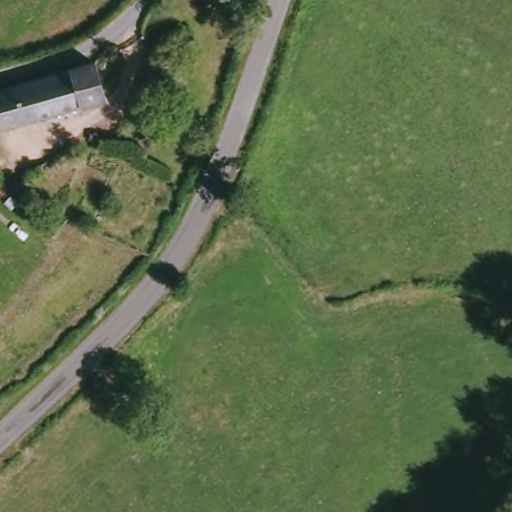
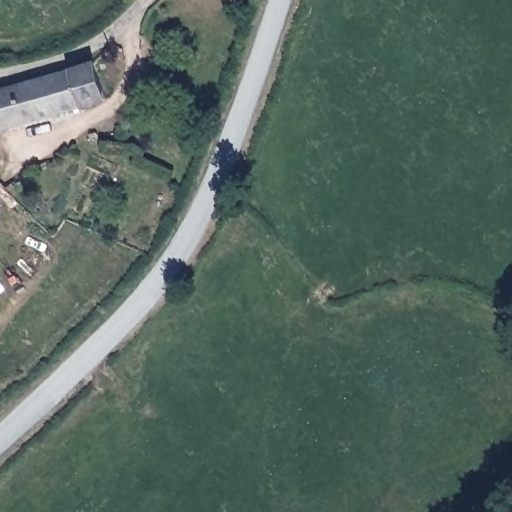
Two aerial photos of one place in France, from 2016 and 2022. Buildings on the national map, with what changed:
unchanged [(76,65),(96,60),(112,98),(89,107),(0,134),(0,88),(76,65)]

